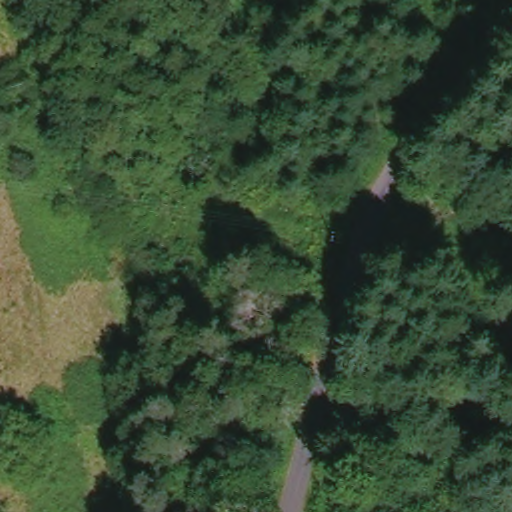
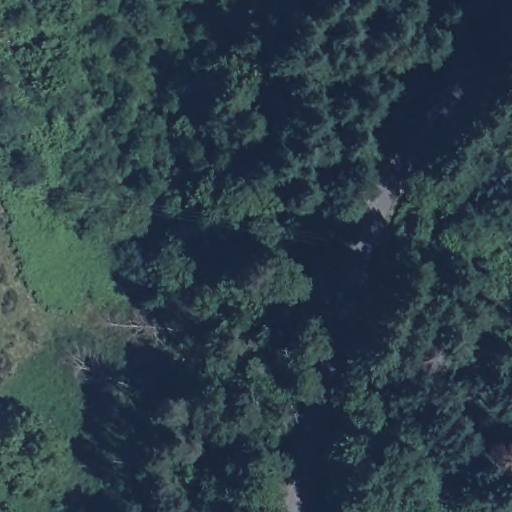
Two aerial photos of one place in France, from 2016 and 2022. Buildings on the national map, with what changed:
[]

